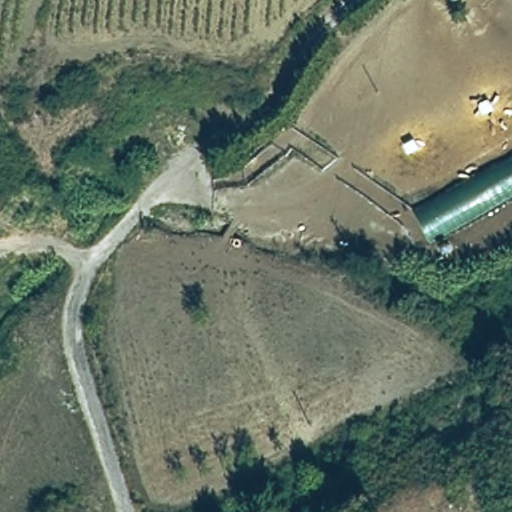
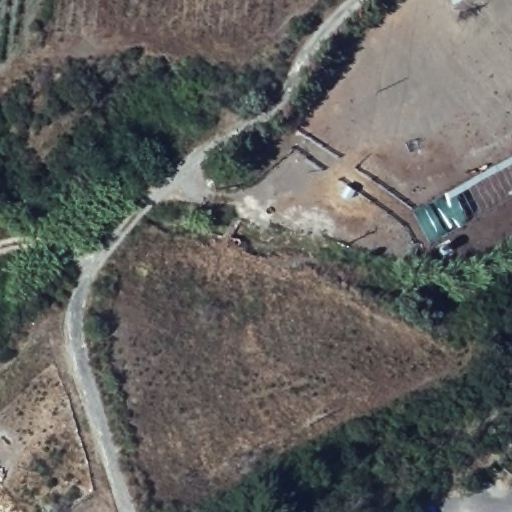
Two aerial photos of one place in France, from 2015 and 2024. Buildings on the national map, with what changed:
unchanged [(512,152),(512,201),(431,245),(411,208),(512,152)]

